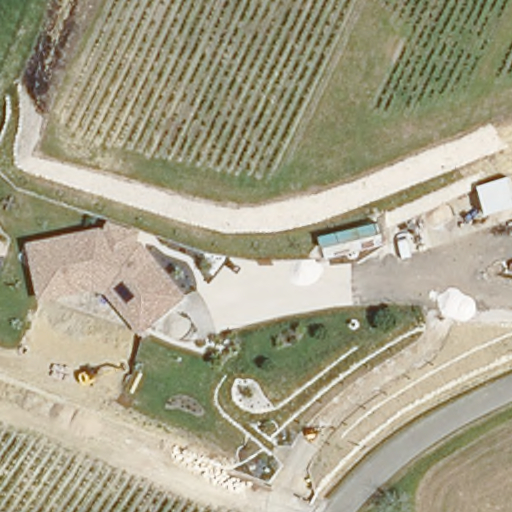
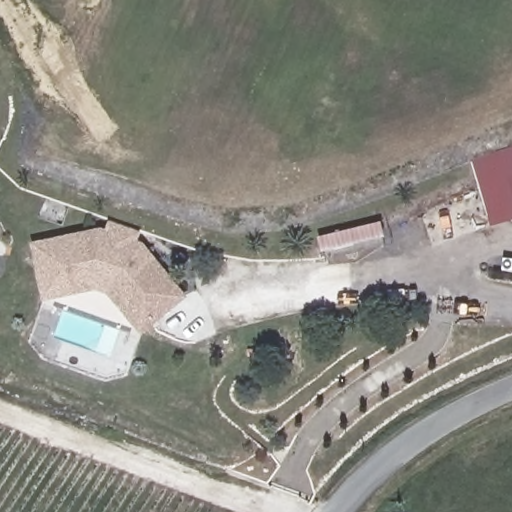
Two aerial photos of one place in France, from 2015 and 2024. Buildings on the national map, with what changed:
new [(493,226),(472,158),(512,147),(512,220),(493,226)]
unchanged [(106,227),(107,221),(140,229),(137,240),(141,240),(187,296),(137,331),(106,291),(93,289),(41,298),(34,242),(106,227)]

